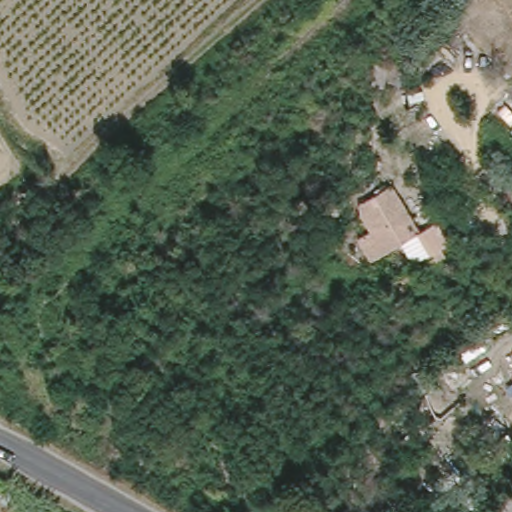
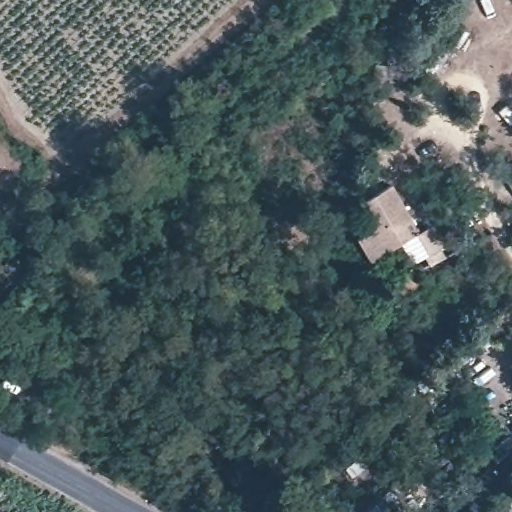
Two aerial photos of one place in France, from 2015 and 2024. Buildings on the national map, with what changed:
unchanged [(390,183),(430,254),(411,265),(400,246),(371,263),(356,237),(368,230),(353,204),(390,183)]

